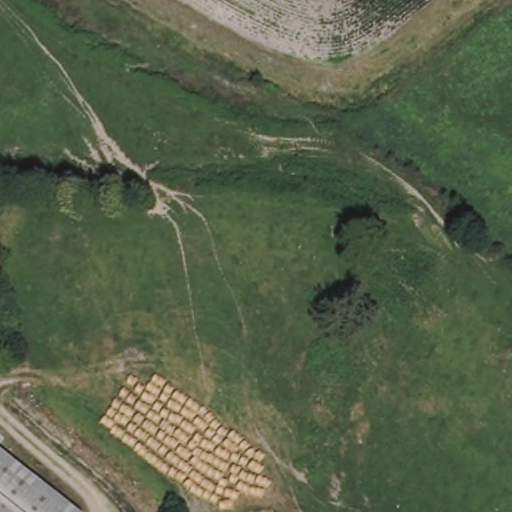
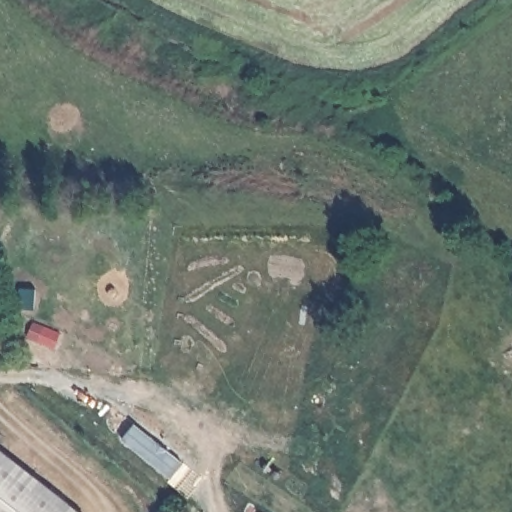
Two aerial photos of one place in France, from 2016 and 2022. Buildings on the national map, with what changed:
unchanged [(80,512),(0,512),(0,451),(80,512)]

